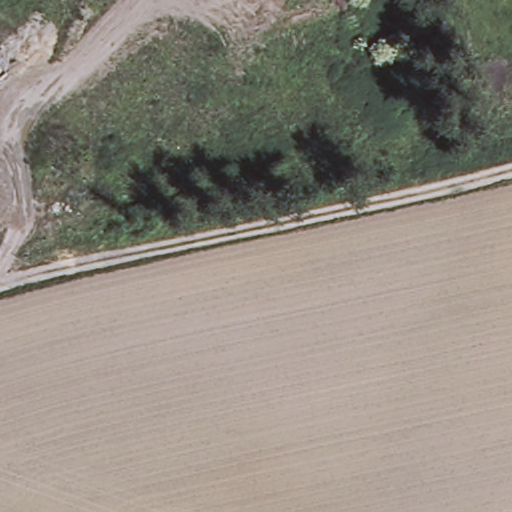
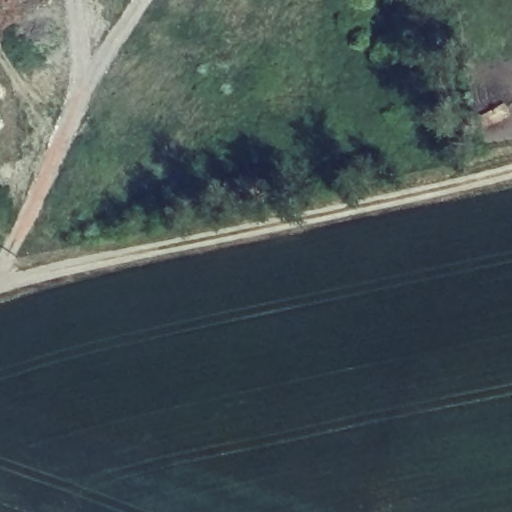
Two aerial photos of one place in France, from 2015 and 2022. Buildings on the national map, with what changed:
unchanged [(25,229),(0,240),(0,208),(14,202),(25,229)]

